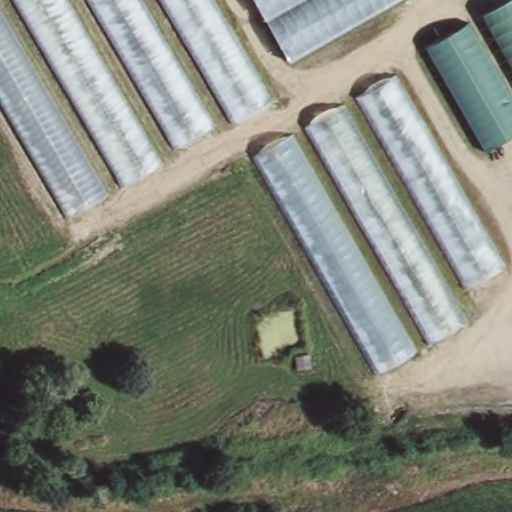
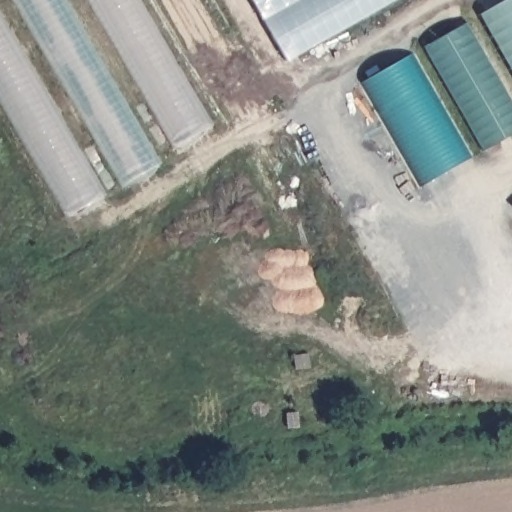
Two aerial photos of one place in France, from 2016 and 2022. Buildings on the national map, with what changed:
unchanged [(159,166),(123,189),(17,0),(62,0),(159,166)]
unchanged [(218,135),(180,155),(91,0),(136,0),(218,135)]
unchanged [(270,105),(233,125),(162,0),(211,0),(270,105)]
unchanged [(284,56),(251,0),(384,0),(284,56)]
unchanged [(504,0),(512,0),(512,69),(481,14),(504,0)]
unchanged [(69,220),(0,101),(0,13),(107,199),(69,220)]
unchanged [(423,46),(466,19),(512,98),(512,128),(483,146),(423,46)]
demolished [(356,92),(395,72),(424,124),(384,145),(356,92)]
demolished [(464,323),(429,343),(306,125),(342,104),(464,323)]
demolished [(479,315),(384,145),(424,124),(512,284),(512,297),(479,315)]
demolished [(411,352),(376,371),(253,155),(288,135),(411,352)]

